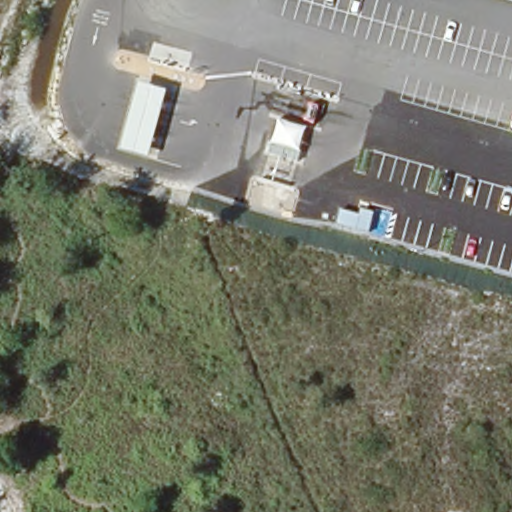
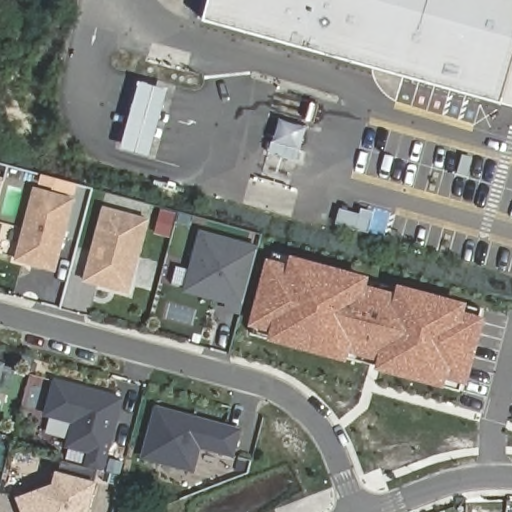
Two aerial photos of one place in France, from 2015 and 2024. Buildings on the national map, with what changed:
new [(512,0),(512,107),(503,104),(202,22),(208,0),(512,0)]
unchanged [(150,156),(124,148),(141,82),(168,90),(150,156)]
new [(3,177),(0,189),(0,176),(3,177)]
new [(75,199),(57,272),(15,261),(32,187),(75,199)]
new [(150,219),(129,295),(81,282),(101,205),(150,219)]
new [(242,306),(239,315),(224,311),(220,301),(182,293),(199,230),(258,245),(242,306)]
new [(295,259),(295,261),(293,260),(291,270),(271,264),(274,254),(295,259)]
new [(343,357),(273,338),(275,329),(254,323),(270,264),(291,270),(293,260),(364,280),(382,285),(383,285),(401,290),(462,306),(461,306),(461,304),(481,310),(478,320),(459,315),(480,320),(464,380),(443,375),(441,383),(440,383),(380,367),(362,362),(361,361),(343,357)]
new [(275,329),(273,338),(274,338),(273,340),(252,334),(255,324),(275,329)]
new [(4,363),(0,381),(0,363),(4,363)]
new [(462,380),(459,390),(439,385),(440,383),(441,383),(443,375),(462,380)]
new [(123,397),(104,474),(98,472),(83,469),(86,455),(65,450),(72,423),(43,416),(54,378),(123,397)]
new [(233,457),(200,449),(194,474),(140,459),(154,405),(241,428),(233,457)]
new [(83,469),(98,472),(87,512),(24,512),(20,501),(54,489),(61,463),(83,469)]

